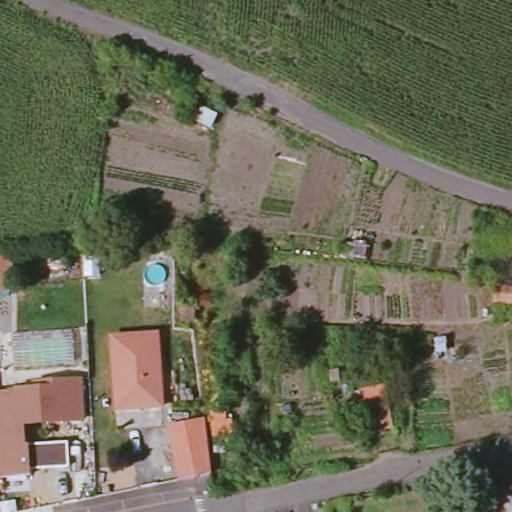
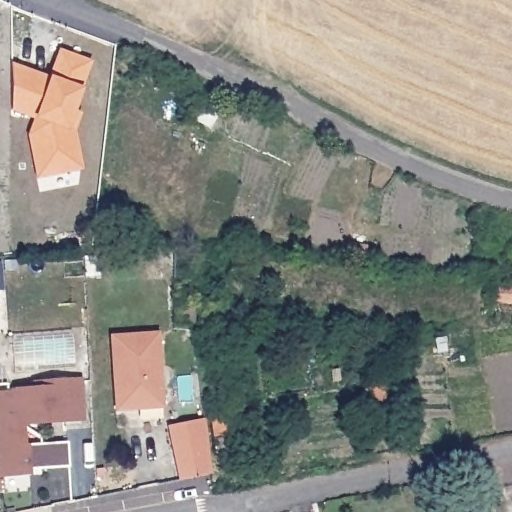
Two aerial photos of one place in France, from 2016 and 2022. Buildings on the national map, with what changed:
new [(50,79),(60,53),(90,63),(66,130),(72,160),(35,168),(29,136),(35,118),(10,110),(10,66),(50,79)]
unchanged [(497,303),(497,289),(512,290),(512,303),(497,303)]
unchanged [(117,396),(114,340),(159,337),(165,410),(129,413),(119,413),(117,396)]
unchanged [(45,384),(80,381),(83,421),(24,425),(26,447),(29,447),(31,478),(0,479),(0,394),(13,394),(29,393),(27,385),(45,384)]
unchanged [(367,390),(387,387),(394,426),(373,430),(367,390)]
unchanged [(227,422),(235,420),(237,453),(210,454),(205,411),(228,411),(227,422)]
unchanged [(209,477),(176,484),(166,424),(202,419),(209,477)]
unchanged [(69,445),(70,466),(30,469),(29,454),(29,447),(69,445)]
unchanged [(492,492),(494,509),(480,511),(474,512),(464,512),(462,497),(477,495),(492,492)]

